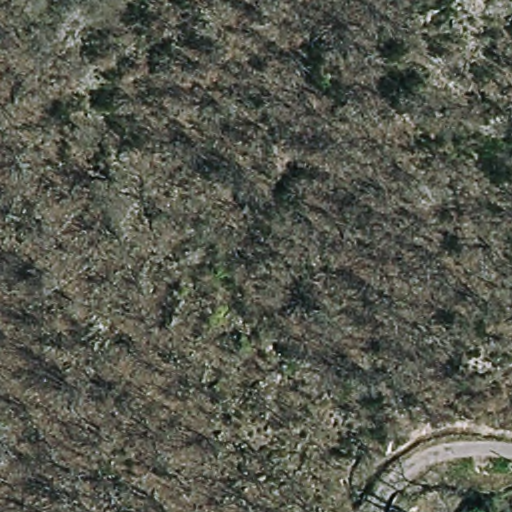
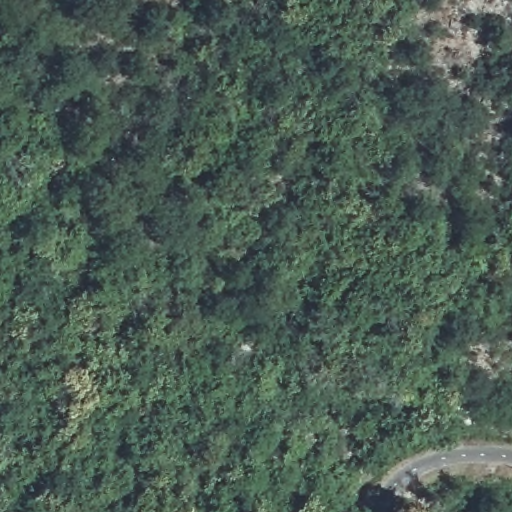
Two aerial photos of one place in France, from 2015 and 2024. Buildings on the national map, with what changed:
[]

